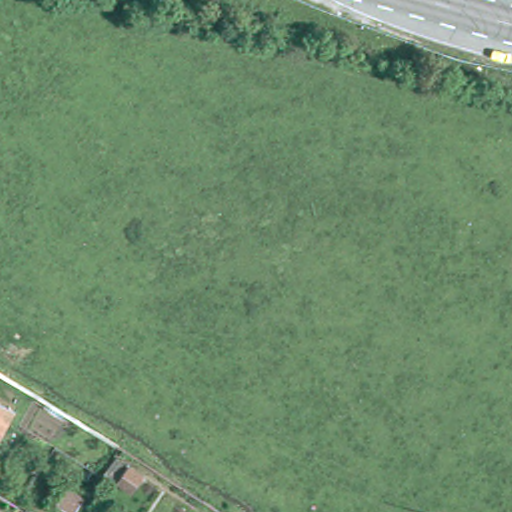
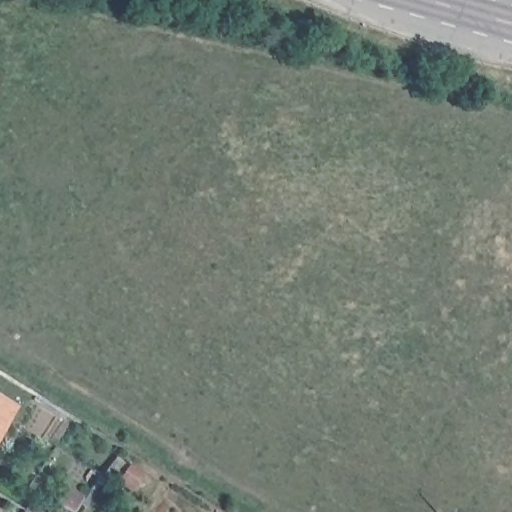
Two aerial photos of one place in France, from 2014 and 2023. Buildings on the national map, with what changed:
unchanged [(12,408),(0,429),(0,401),(12,408)]
unchanged [(72,512),(56,502),(66,487),(83,498),(74,512),(72,512)]

